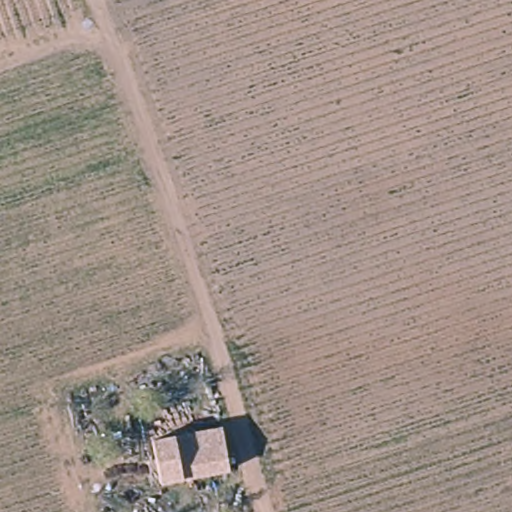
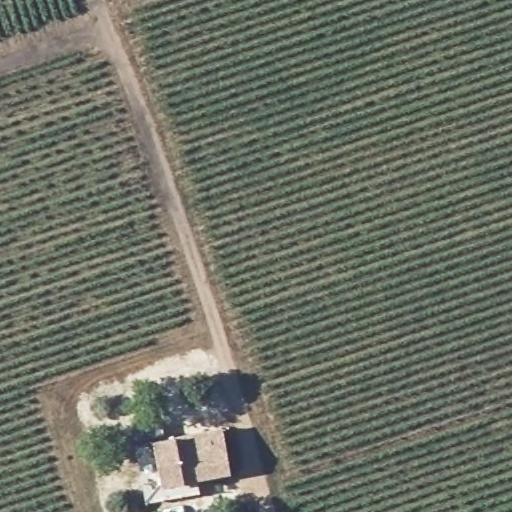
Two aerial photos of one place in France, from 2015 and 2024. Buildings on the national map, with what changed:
unchanged [(150,475),(148,431),(231,429),(233,477),(150,475)]

